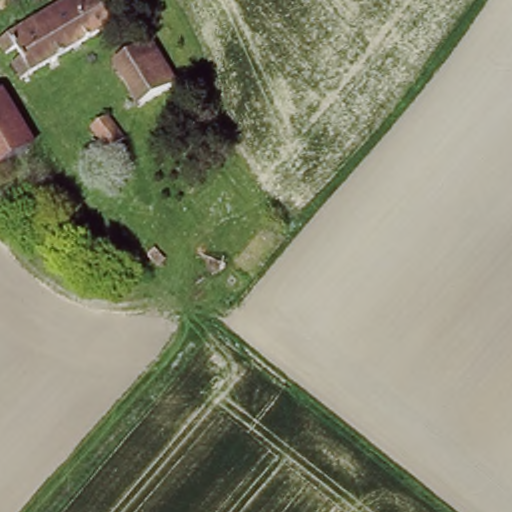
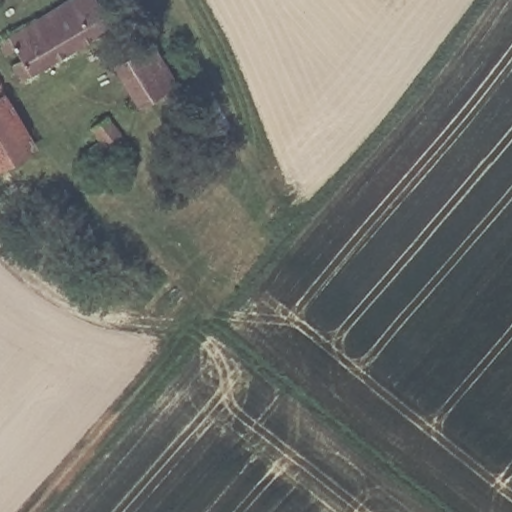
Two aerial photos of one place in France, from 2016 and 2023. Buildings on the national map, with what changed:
unchanged [(120,24),(25,81),(0,39),(66,0),(107,0),(120,24)]
unchanged [(177,86),(141,109),(114,68),(150,45),(177,86)]
unchanged [(39,149),(0,171),(0,96),(7,93),(39,149)]
unchanged [(122,139),(80,166),(70,147),(89,136),(81,125),(105,111),(122,139)]

